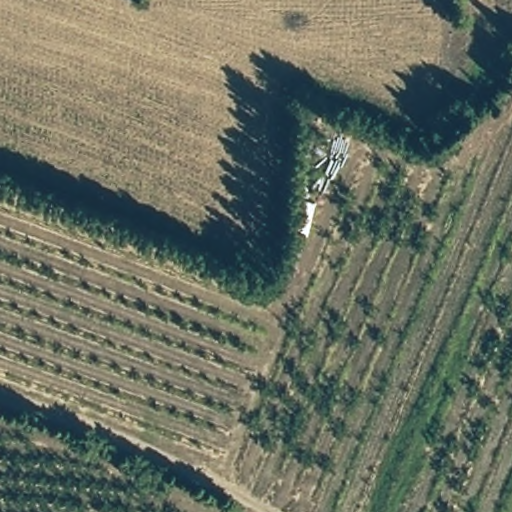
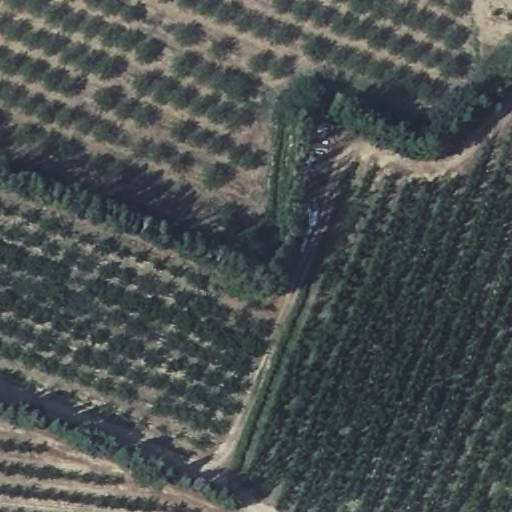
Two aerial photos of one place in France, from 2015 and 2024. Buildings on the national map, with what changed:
unchanged [(348,139),(334,172),(312,163),(325,131),(348,139)]

